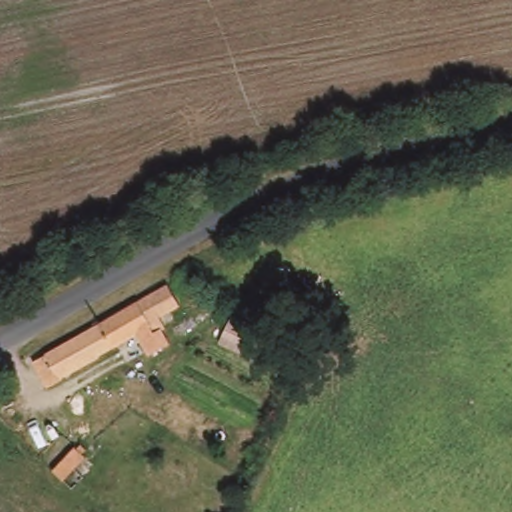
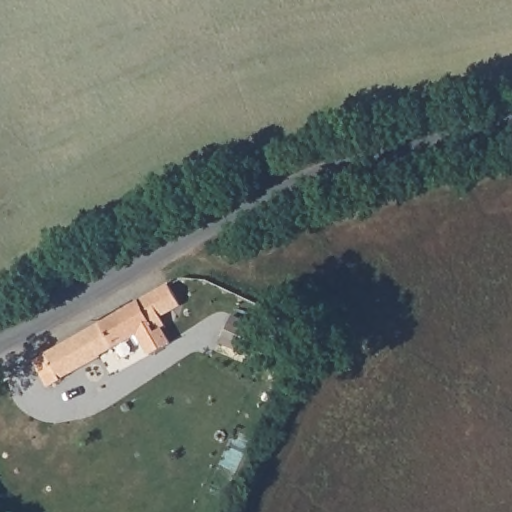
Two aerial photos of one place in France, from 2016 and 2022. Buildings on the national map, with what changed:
unchanged [(179,308),(159,320),(165,329),(157,334),(161,339),(145,349),(137,335),(61,381),(61,383),(48,392),(36,374),(51,365),(46,357),(166,287),(179,308)]
unchanged [(16,400),(0,410),(0,379),(2,378),(16,400)]
unchanged [(81,449),(87,443),(92,447),(86,453),(89,456),(69,478),(58,468),(78,446),(81,449)]

